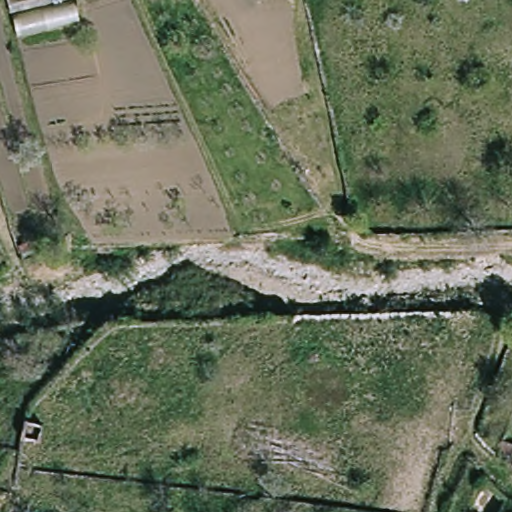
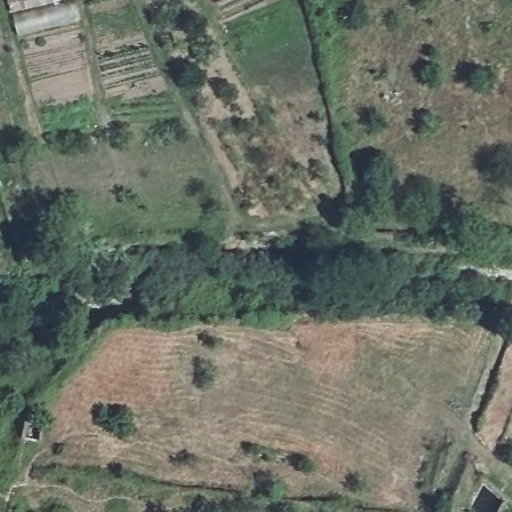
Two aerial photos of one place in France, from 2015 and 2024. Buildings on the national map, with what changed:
unchanged [(20,34),(10,0),(77,0),(84,20),(20,34)]

